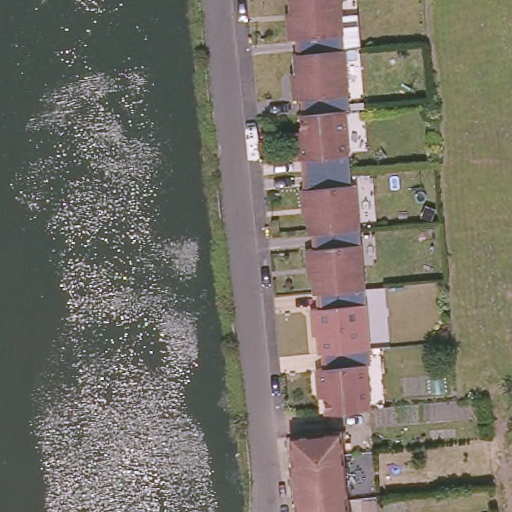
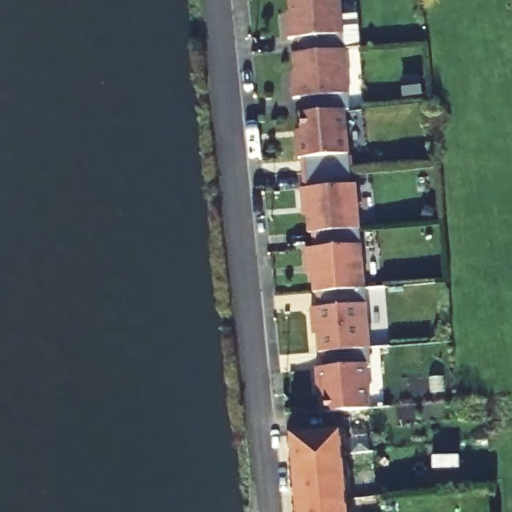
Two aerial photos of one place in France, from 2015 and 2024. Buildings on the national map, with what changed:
unchanged [(342,15),(290,19),(289,0),(340,0),(342,15)]
unchanged [(304,144),(303,128),(302,115),(302,104),(301,100),(294,100),(293,84),(297,83),(295,62),(295,55),(297,55),(295,40),(289,40),(287,20),(290,19),(342,15),(345,51),(345,58),(349,99),(350,111),(345,112),(347,125),(349,147),(300,151),(299,144),(304,144)]
unchanged [(303,192),(305,192),(304,176),(303,174),(302,162),(300,162),(300,151),(349,147),(351,170),(351,173),(352,187),(357,186),(357,194),(303,197),(303,192)]
unchanged [(322,356),(319,330),(315,330),(314,312),(320,312),(319,296),(315,296),(315,279),(313,271),(310,271),(309,252),(314,252),(313,242),(312,237),(311,237),(308,210),(305,210),(303,197),(357,194),(361,234),(362,239),(365,275),(366,292),(372,352),(345,355),(324,356),(322,356)]
unchanged [(367,370),(371,413),(327,416),(326,391),(321,391),(319,373),(325,372),(324,356),(345,355),(372,352),(373,369),(367,370)]
unchanged [(294,456),(292,435),(340,430),(342,452),(294,456)]
unchanged [(296,480),(294,456),(342,452),(343,475),(296,480)]
unchanged [(298,501),(296,480),(343,475),(345,497),(298,501)]
unchanged [(345,497),(347,512),(299,512),(298,501),(345,497)]

